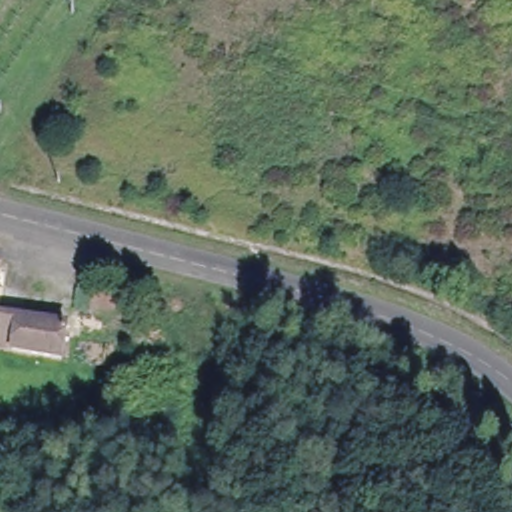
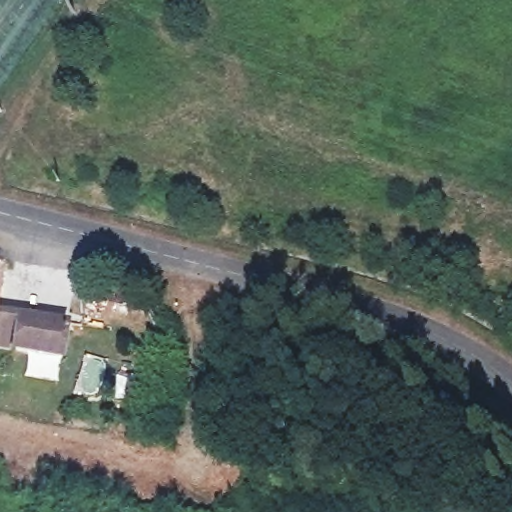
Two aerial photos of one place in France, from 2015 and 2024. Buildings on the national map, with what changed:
unchanged [(62,323),(59,355),(0,347),(0,315),(62,323)]

